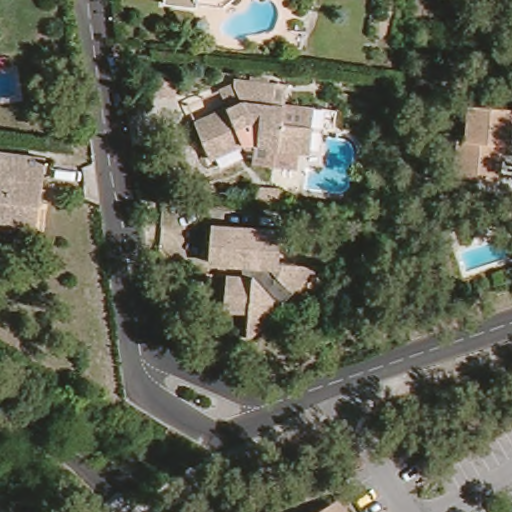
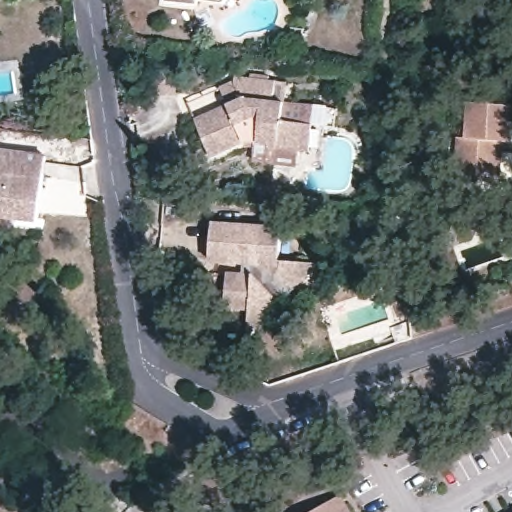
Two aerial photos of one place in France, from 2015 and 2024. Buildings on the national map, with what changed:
unchanged [(214,0),(227,0),(226,1),(214,0)]
unchanged [(151,94),(150,73),(171,72),(172,92),(151,94)]
unchanged [(203,139),(194,118),(242,96),(234,85),(235,75),(275,80),(273,100),(283,101),(299,104),(297,122),(312,124),(309,150),(279,147),(279,144),(246,140),(225,150),(211,156),(203,139)]
unchanged [(501,175),(455,172),(457,137),(467,137),(470,102),(512,105),(512,150),(503,150),(501,175)]
unchanged [(0,217),(0,149),(44,155),(36,221),(0,217)]
unchanged [(255,313),(255,309),(229,307),(231,288),(232,274),(242,275),(250,275),(252,263),(221,260),(214,260),(215,241),(217,223),(285,227),(284,260),(303,261),(325,263),(300,286),(296,290),(294,291),(279,306),(278,315),(252,337),(255,313)]
unchanged [(345,495),(355,512),(314,512),(345,495)]

